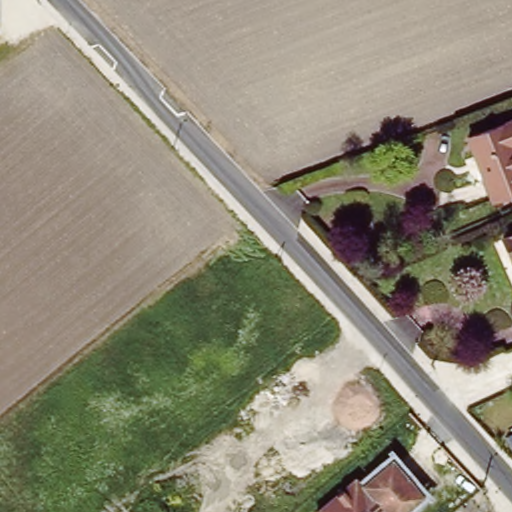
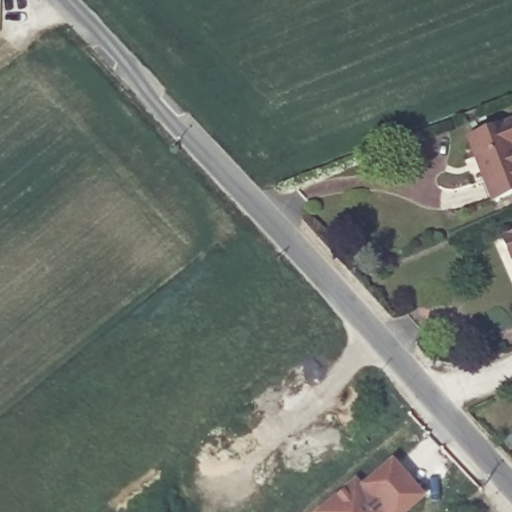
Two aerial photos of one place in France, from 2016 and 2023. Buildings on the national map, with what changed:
unchanged [(512,151),(512,193),(490,201),(467,140),(512,124),(512,149),(512,151)]
unchanged [(512,258),(506,240),(512,238),(512,258)]
unchanged [(425,496),(403,512),(316,512),(356,479),(359,484),(388,459),(425,496)]

